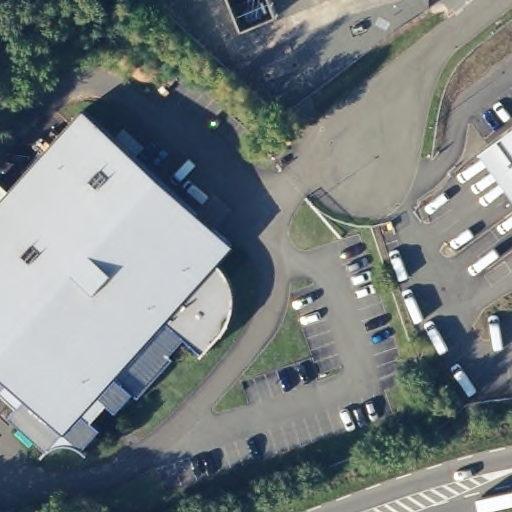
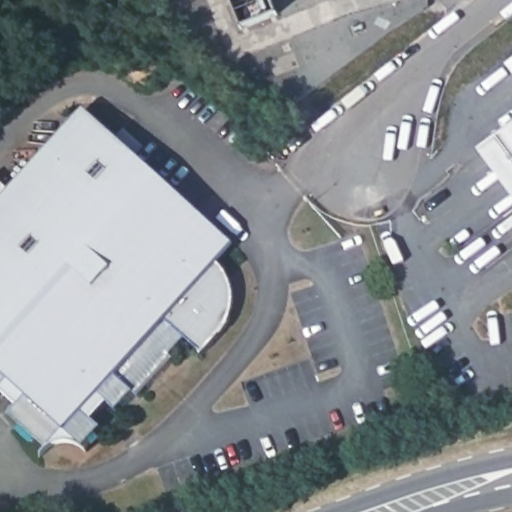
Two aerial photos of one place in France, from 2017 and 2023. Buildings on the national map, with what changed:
unchanged [(229,0),(248,0),(231,6),(229,0)]
unchanged [(15,196),(89,114),(238,249),(223,267),(224,269),(226,270),(231,276),(235,284),(238,294),(239,305),(238,317),(233,328),(228,338),(208,359),(191,345),(176,362),(180,364),(145,403),(141,399),(124,418),(113,407),(98,424),(109,435),(91,456),(90,455),(87,452),(83,449),(78,447),(73,446),(68,446),(63,447),(59,448),(54,451),(51,454),(48,458),(11,423),(21,410),(5,394),(0,401),(0,188),(3,185),(15,196)]
unchanged [(497,139),(512,127),(512,159),(497,139)]
unchanged [(512,159),(512,197),(479,152),(497,139),(512,159)]

